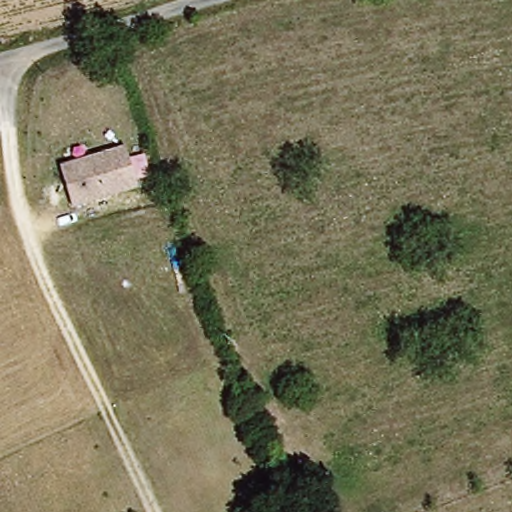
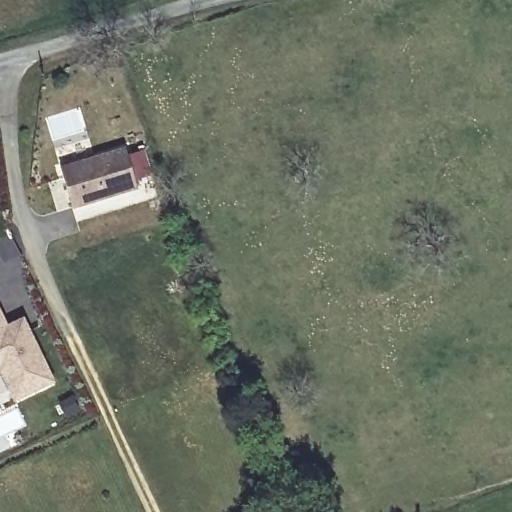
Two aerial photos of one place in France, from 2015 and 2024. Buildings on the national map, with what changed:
unchanged [(60,166),(125,147),(137,186),(72,205),(60,166)]
new [(17,400),(0,367),(0,368),(0,323),(0,315),(0,310),(2,314),(8,328),(25,320),(30,331),(55,381),(17,400)]

